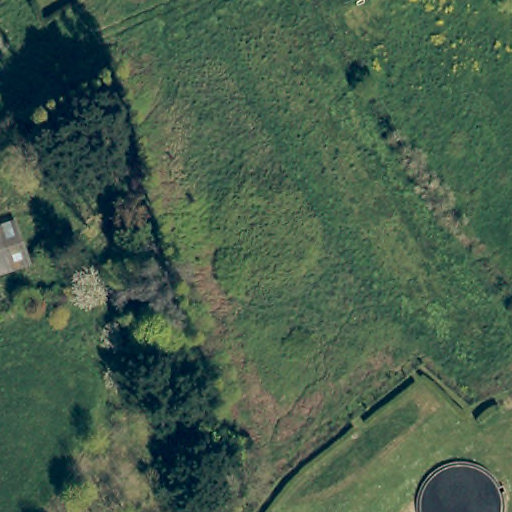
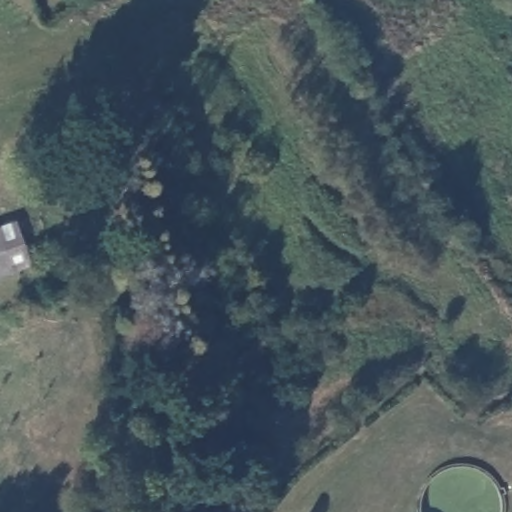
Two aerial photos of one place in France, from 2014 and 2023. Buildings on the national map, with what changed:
unchanged [(0,233),(10,263),(12,270),(0,274),(0,233)]

